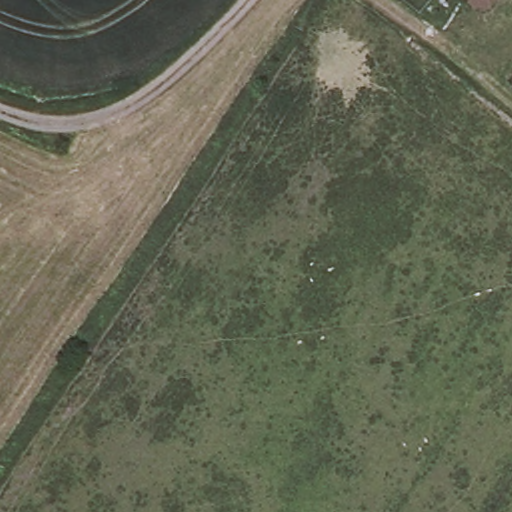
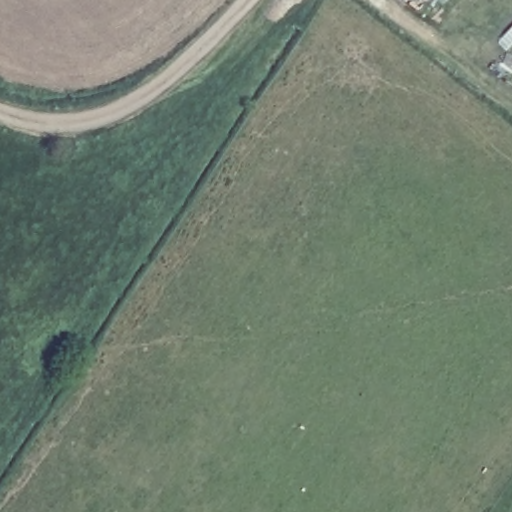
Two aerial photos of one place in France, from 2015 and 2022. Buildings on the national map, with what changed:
[]

